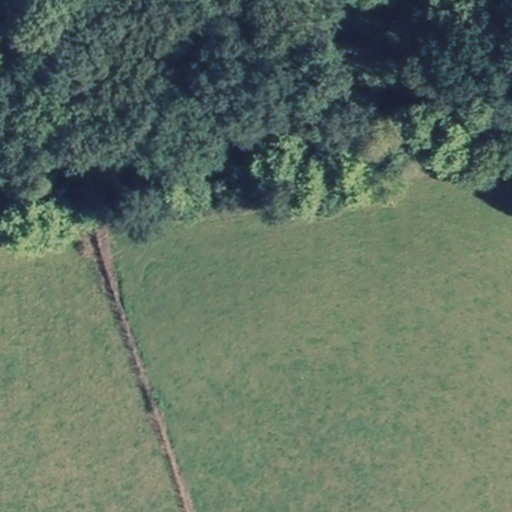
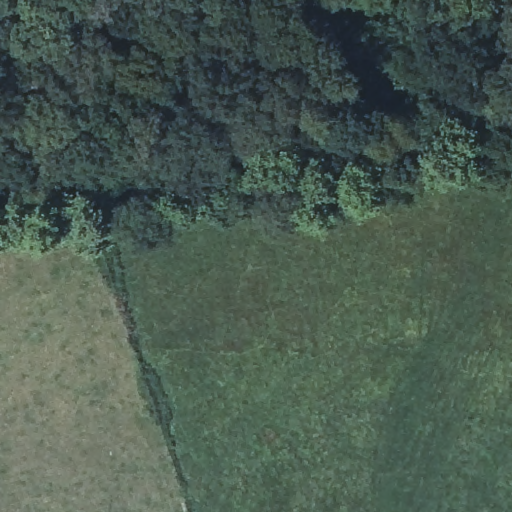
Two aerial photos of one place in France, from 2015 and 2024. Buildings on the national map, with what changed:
[]

